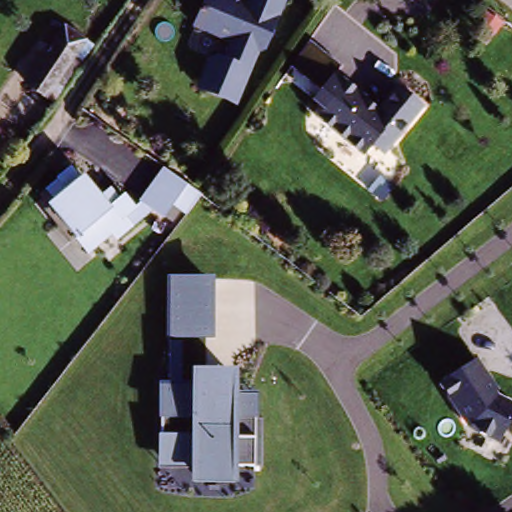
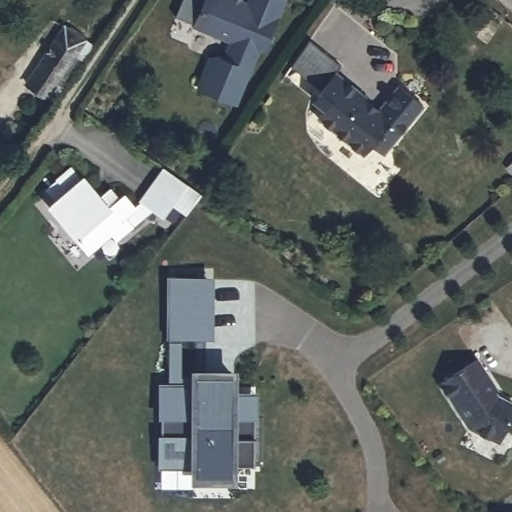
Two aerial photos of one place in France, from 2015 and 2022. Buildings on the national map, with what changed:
unchanged [(240,106),(201,88),(228,41),(198,26),(212,0),(250,0),(293,0),(240,106)]
unchanged [(50,96),(31,84),(69,27),(88,40),(50,96)]
unchanged [(407,82),(429,102),(389,150),(378,140),(369,151),(325,115),(339,97),(327,87),(341,69),(371,94),(371,95),(386,107),(407,82)]
unchanged [(28,130),(11,119),(28,94),(45,104),(28,130)]
unchanged [(101,197),(111,189),(119,199),(125,192),(136,203),(162,167),(204,195),(189,216),(173,206),(162,219),(153,212),(119,241),(114,236),(90,255),(45,204),(53,197),(46,191),(56,182),(54,180),(71,165),(101,197)]
unchanged [(209,278),(208,338),(184,339),(184,385),(196,385),(196,377),(236,378),(235,395),(248,395),(247,416),(257,417),(257,467),(234,467),(234,478),(193,476),(193,466),(161,465),(161,385),(169,384),(171,276),(209,278)]
unchanged [(512,398),(512,427),(503,445),(473,428),(443,385),(481,355),(502,392),(512,398)]

